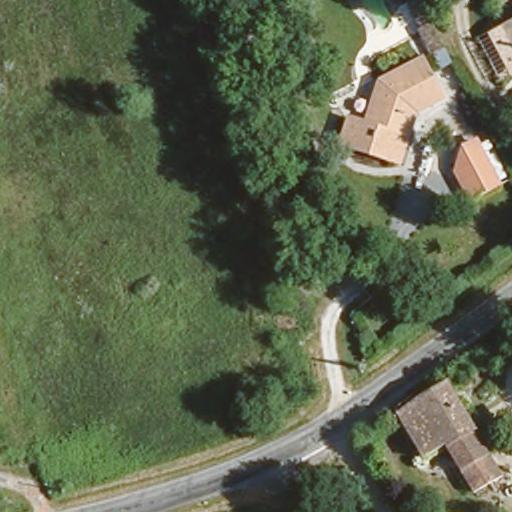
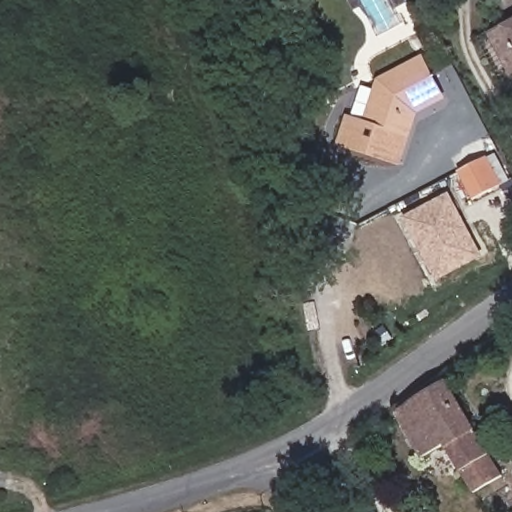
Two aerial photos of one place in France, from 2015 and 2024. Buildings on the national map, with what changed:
new [(405,1),(407,0),(418,0),(430,21),(445,48),(430,55),(416,30),(419,28),(405,1)]
unchanged [(497,17),(512,10),(512,51),(497,17)]
unchanged [(399,133),(365,120),(377,80),(423,55),(441,95),(418,106),(412,100),(401,110),(408,117),(399,133)]
unchanged [(402,167),(338,147),(346,115),(358,117),(365,120),(399,133),(408,136),(402,167)]
unchanged [(473,197),(457,166),(463,146),(477,139),(500,183),(473,197)]
new [(406,215),(448,192),(484,257),(437,283),(407,219),(406,215)]
unchanged [(474,487),(462,466),(452,450),(426,466),(413,442),(388,398),(435,360),(488,450),(500,470),(474,487)]

